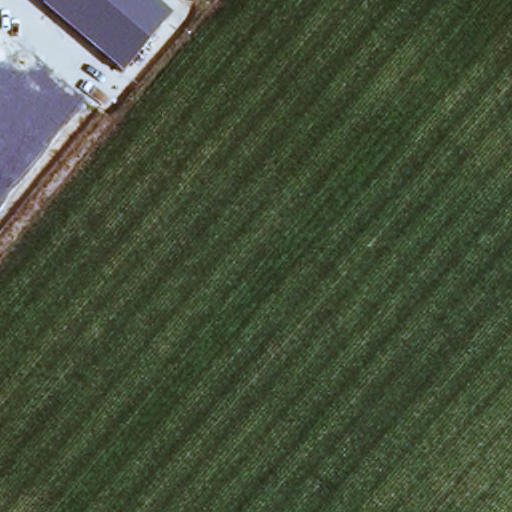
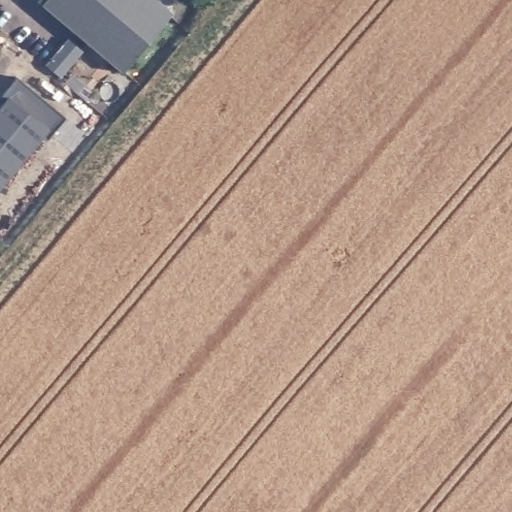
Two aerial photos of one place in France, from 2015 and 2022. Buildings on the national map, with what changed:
unchanged [(153,0),(171,16),(122,73),(42,6),(47,0),(153,0)]
new [(0,186),(0,108),(2,106),(0,104),(0,97),(1,96),(16,79),(65,120),(50,138),(45,143),(40,139),(0,186)]

